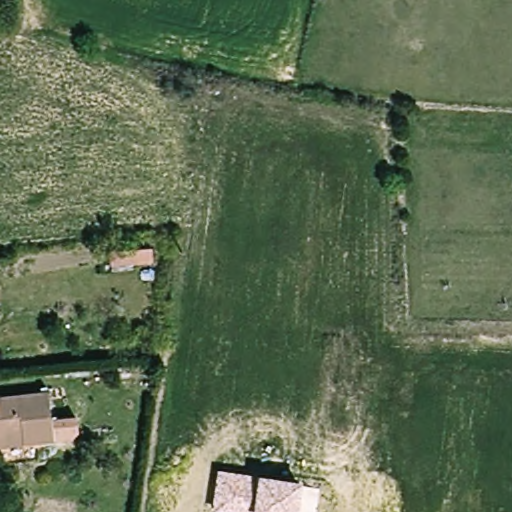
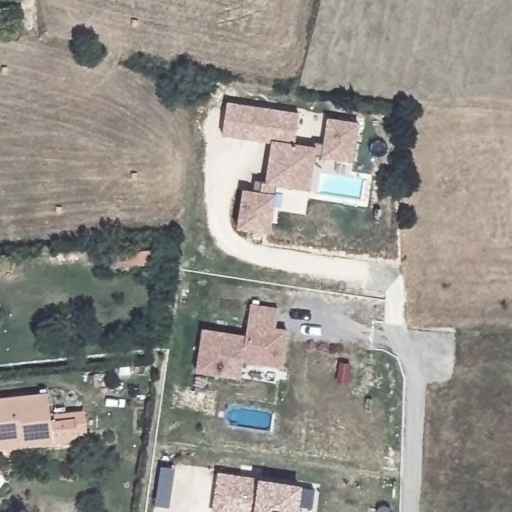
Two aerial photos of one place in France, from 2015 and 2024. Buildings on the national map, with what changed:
new [(226,107),(267,114),(264,133),(268,134),(266,146),(221,139),(226,107)]
new [(261,186),(266,187),(272,147),(266,146),(268,134),(264,133),(267,114),(299,119),(294,150),(314,153),(315,148),(324,150),(328,124),(359,129),(352,167),(314,161),(311,178),(308,195),(291,192),(276,190),(268,238),(236,233),(242,195),(252,197),(254,185),(261,186)]
unchanged [(133,258),(134,269),(113,271),(113,260),(133,258)]
new [(196,321),(239,328),(244,297),(272,302),(269,321),(281,323),(275,359),(236,353),(233,370),(190,363),(196,321)]
unchanged [(0,400),(54,396),(56,425),(80,424),(81,438),(75,444),(58,445),(58,446),(25,449),(4,451),(0,451),(0,400)]
unchanged [(303,484),(300,512),(213,512),(218,472),(303,484)]

